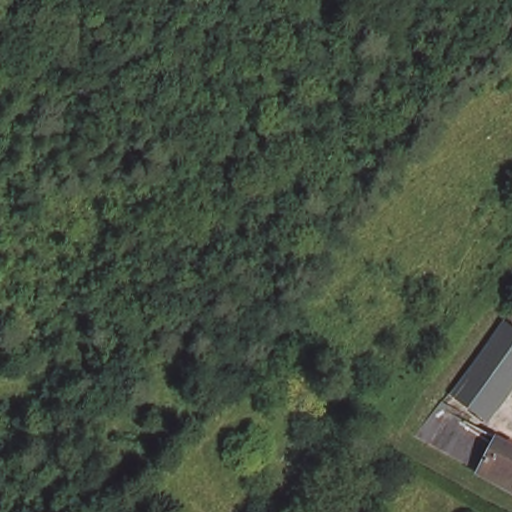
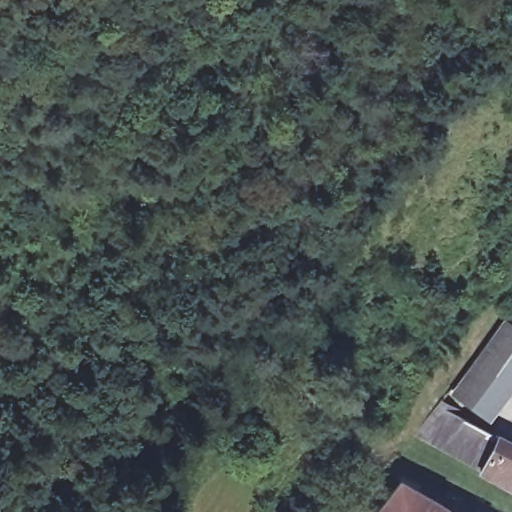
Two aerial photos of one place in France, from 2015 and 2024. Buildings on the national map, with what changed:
unchanged [(512,308),(512,322),(505,317),(512,308)]
unchanged [(512,329),(512,382),(480,425),(446,406),(506,325),(512,329)]
unchanged [(442,404),(446,406),(480,425),(512,444),(512,487),(416,437),(442,404)]
new [(399,477),(447,505),(445,507),(453,512),(373,512),(399,477)]

